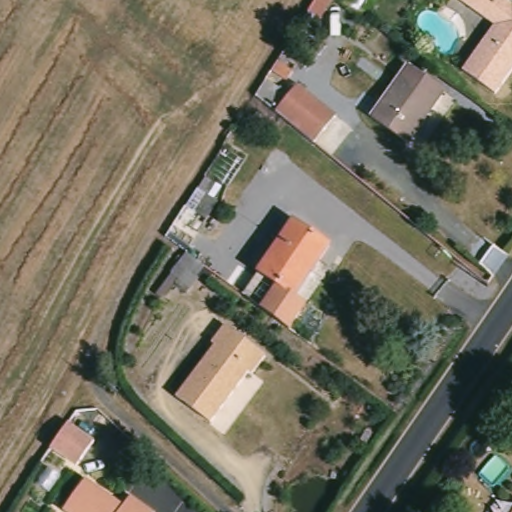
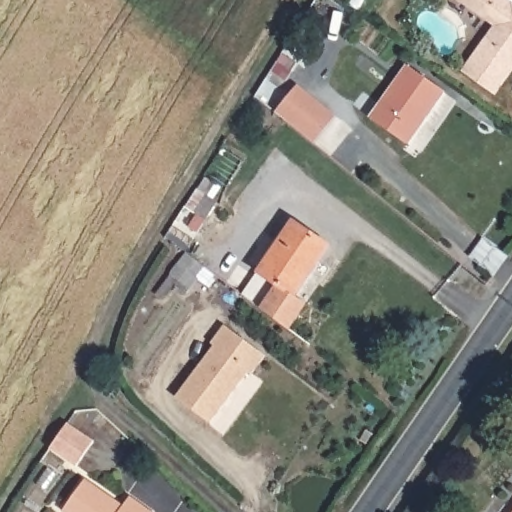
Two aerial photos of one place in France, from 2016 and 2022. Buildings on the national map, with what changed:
unchanged [(459,0),(457,2),(455,0),(459,0)]
unchanged [(459,0),(504,0),(512,5),(512,77),(499,96),(465,73),(496,29),(457,2),(459,0)]
unchanged [(449,92),(413,142),(376,117),(411,67),(449,92)]
unchanged [(281,86),(267,104),(257,96),(268,77),(281,86)]
unchanged [(298,83),(338,115),(317,142),(276,111),(298,83)]
unchanged [(334,247),(298,298),(261,273),(296,222),(334,247)]
unchanged [(171,399),(208,346),(205,343),(218,326),(259,355),(247,372),(243,371),(206,423),(171,399)]
unchanged [(93,442),(76,468),(50,451),(55,442),(66,425),(93,442)]
unchanged [(124,502),(131,491),(156,507),(154,512),(68,512),(86,480),(124,502)]

